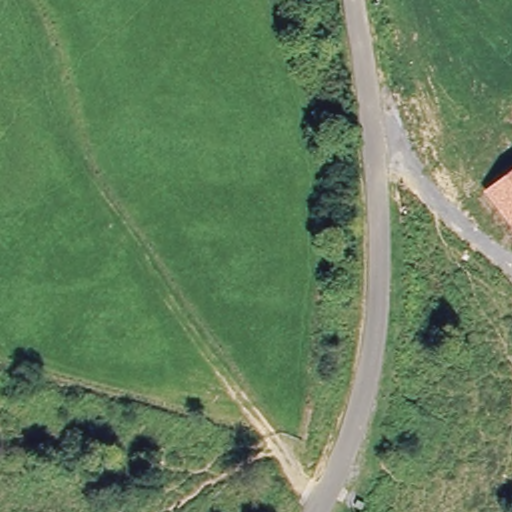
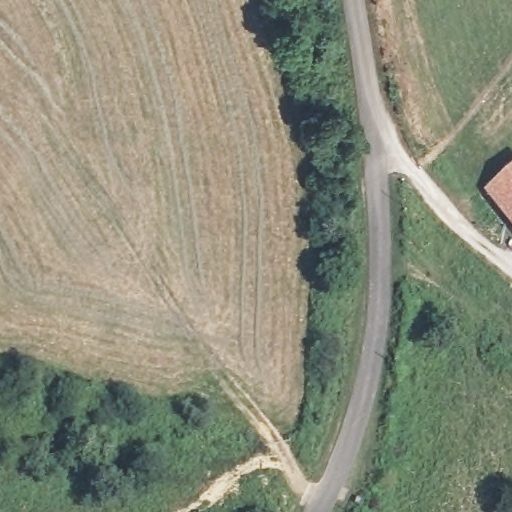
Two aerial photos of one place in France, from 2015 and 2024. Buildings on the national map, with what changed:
unchanged [(482,192),(512,168),(512,228),(482,192)]

